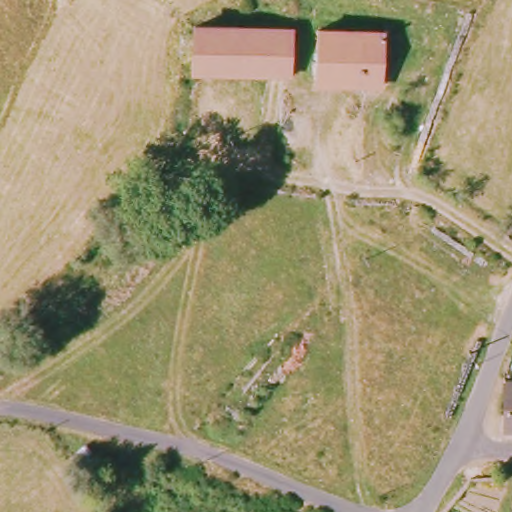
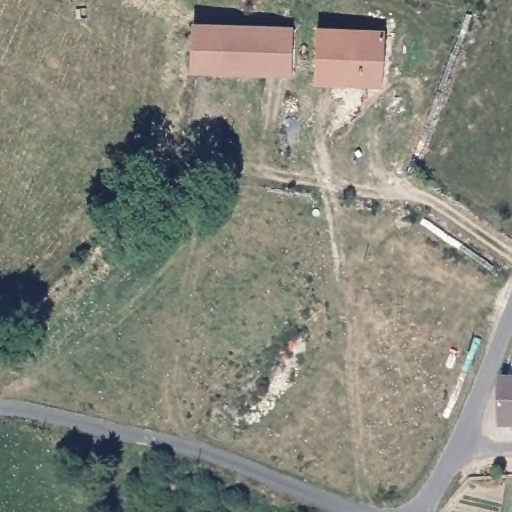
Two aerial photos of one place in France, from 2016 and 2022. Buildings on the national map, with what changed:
unchanged [(232,24),(282,30),(278,76),(200,67),(203,23),(232,24)]
unchanged [(363,84),(330,81),(312,80),(315,28),(382,31),(380,72),(378,86),(363,84)]
unchanged [(512,429),(501,428),(503,379),(512,379),(512,429)]

